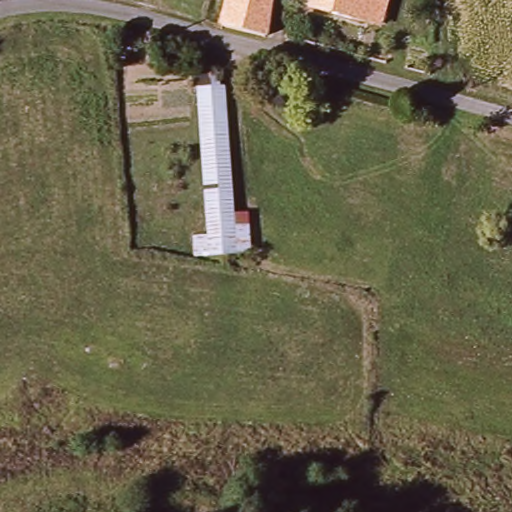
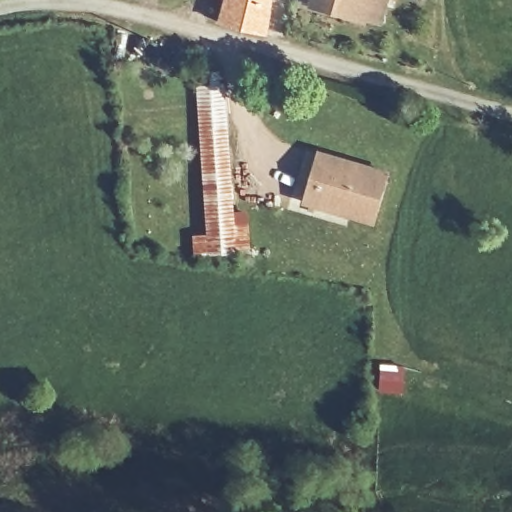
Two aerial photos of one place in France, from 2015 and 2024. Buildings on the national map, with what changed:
unchanged [(272,28),(227,16),(231,0),(277,0),(272,28)]
unchanged [(391,21),(375,17),(321,2),(321,0),(397,0),(391,21)]
unchanged [(199,234),(214,232),(205,84),(232,82),(242,210),(255,209),(257,253),(201,255),(199,234)]
new [(317,149),(390,170),(375,224),(303,203),(317,149)]

